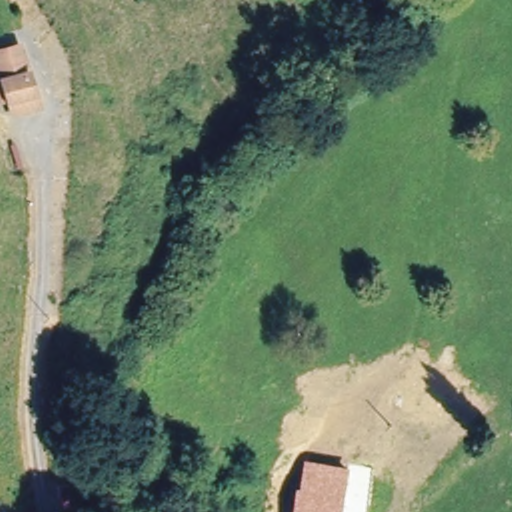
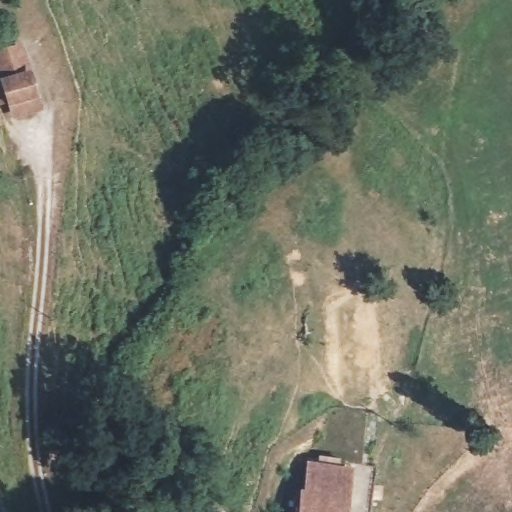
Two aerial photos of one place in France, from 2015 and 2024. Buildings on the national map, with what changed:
unchanged [(0,100),(0,88),(8,85),(0,59),(0,54),(22,48),(28,65),(37,95),(41,108),(18,116),(13,101),(2,105),(0,100)]
unchanged [(302,489),(305,465),(349,471),(343,512),(299,512),(302,489)]

